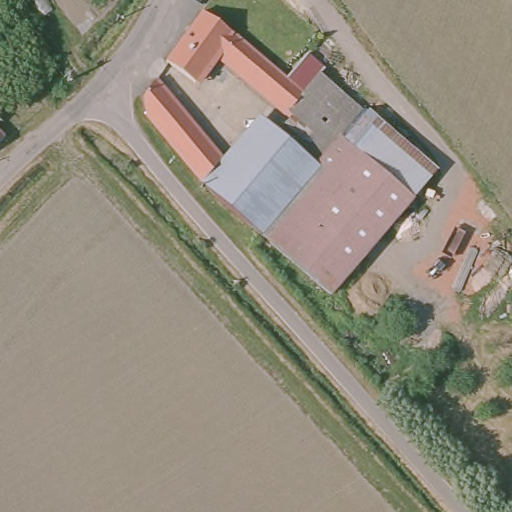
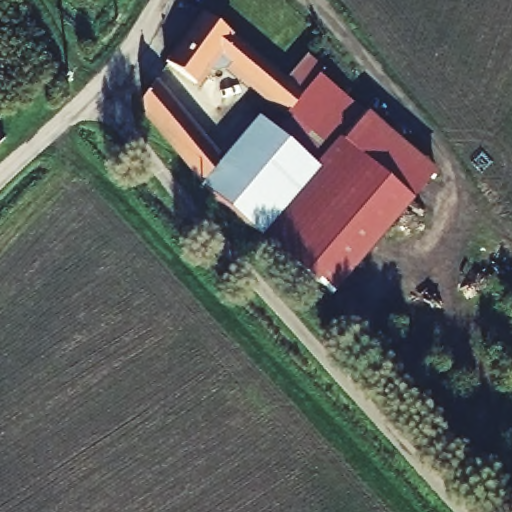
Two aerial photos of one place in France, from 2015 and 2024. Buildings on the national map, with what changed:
unchanged [(244,40),(286,79),(306,95),(291,115),(218,52),(196,80),(164,56),(202,8),(244,40)]
unchanged [(278,130),(291,115),(306,95),(286,79),(308,55),(361,112),(431,179),(334,295),(208,181),(260,119),(278,130)]
unchanged [(152,80),(218,160),(198,180),(141,118),(138,95),(152,80)]
unchanged [(3,131),(0,134),(0,128),(3,131)]

